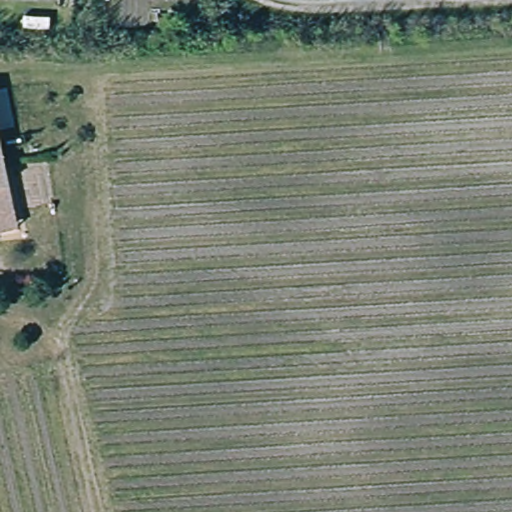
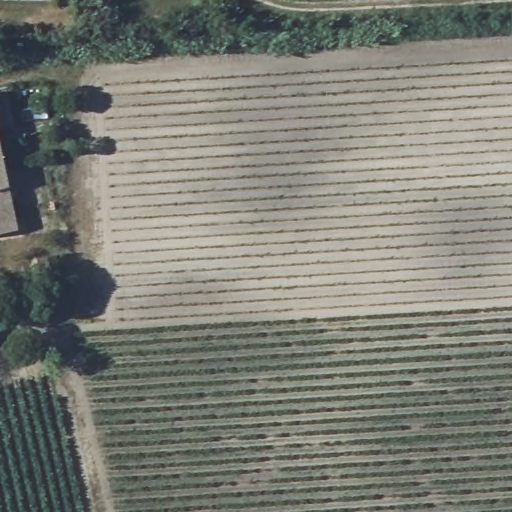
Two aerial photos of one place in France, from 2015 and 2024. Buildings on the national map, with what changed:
unchanged [(0,212),(0,151),(15,208),(20,224),(3,228),(0,229),(0,216),(0,212)]

